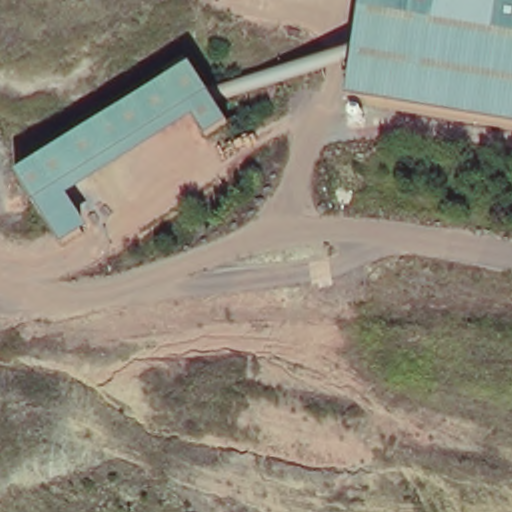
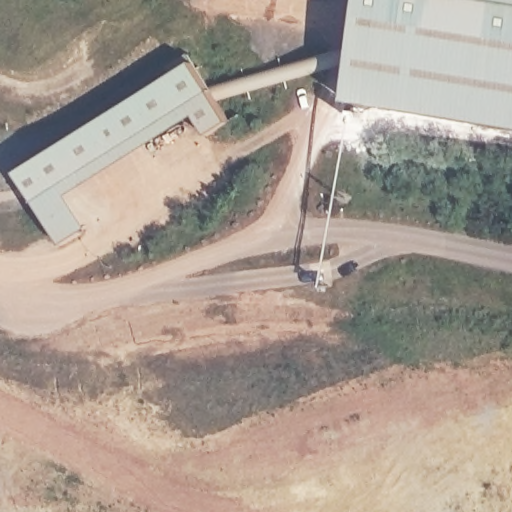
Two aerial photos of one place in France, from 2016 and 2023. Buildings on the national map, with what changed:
unchanged [(365,0),(512,0),(512,128),(347,100),(365,0)]
unchanged [(226,120),(202,134),(190,116),(66,194),(86,227),(60,245),(13,170),(188,59),(226,120)]

